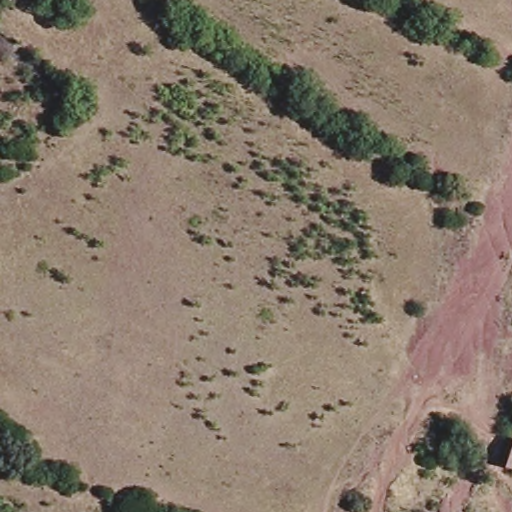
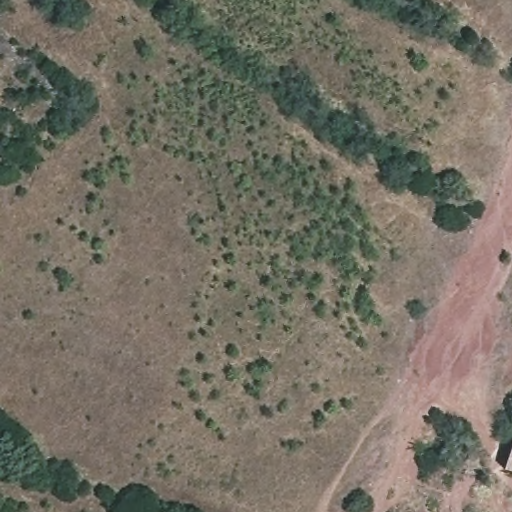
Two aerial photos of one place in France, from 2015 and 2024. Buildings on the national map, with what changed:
unchanged [(493,464),(501,438),(512,440),(512,468),(493,464)]

